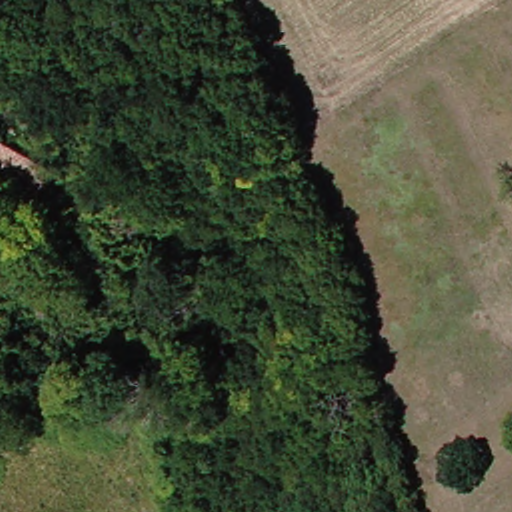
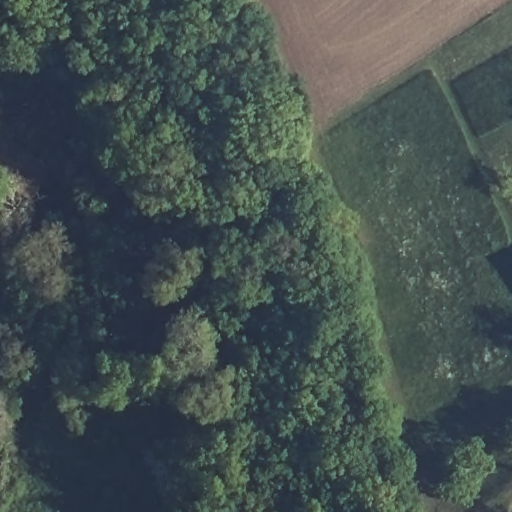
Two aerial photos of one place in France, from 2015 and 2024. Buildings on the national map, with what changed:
unchanged [(0,155),(0,121),(14,129),(0,155)]
unchanged [(14,129),(35,140),(8,187),(0,183),(0,155),(14,129)]

